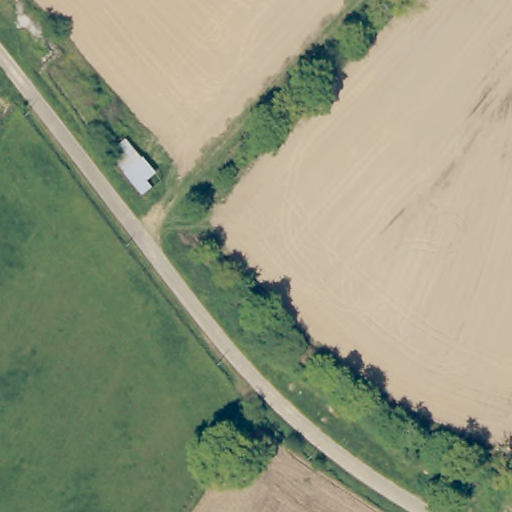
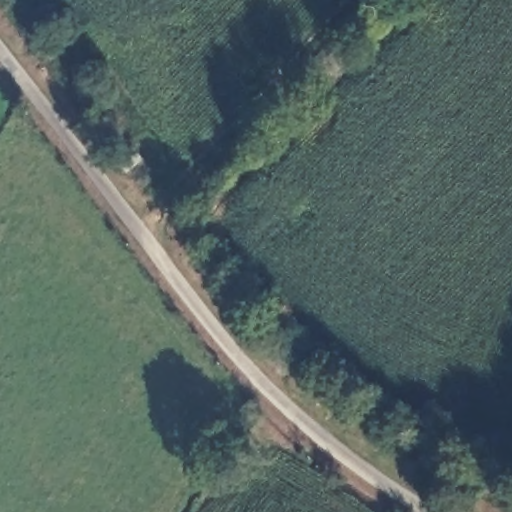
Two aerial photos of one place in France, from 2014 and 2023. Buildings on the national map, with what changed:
unchanged [(162,180),(141,198),(103,151),(123,133),(162,180)]

